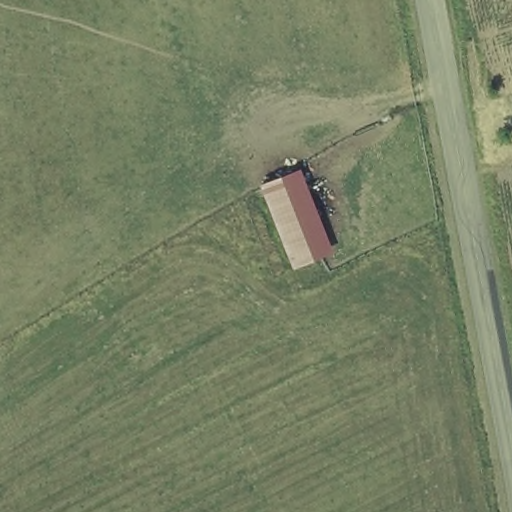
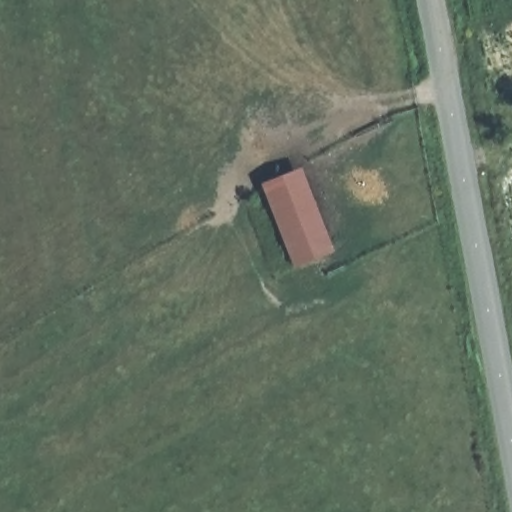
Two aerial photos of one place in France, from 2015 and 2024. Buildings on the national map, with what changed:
unchanged [(306,169),(339,250),(301,267),(267,185),(306,169)]

